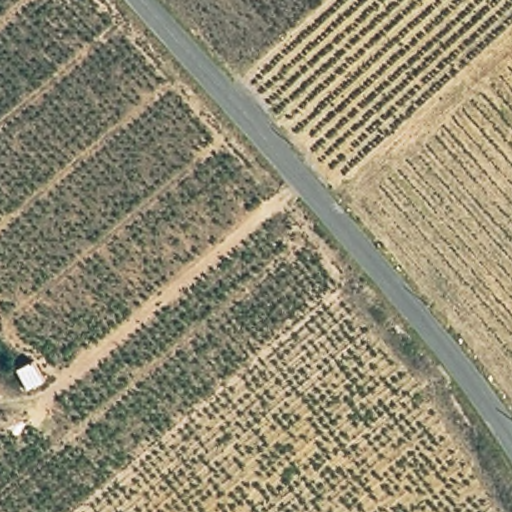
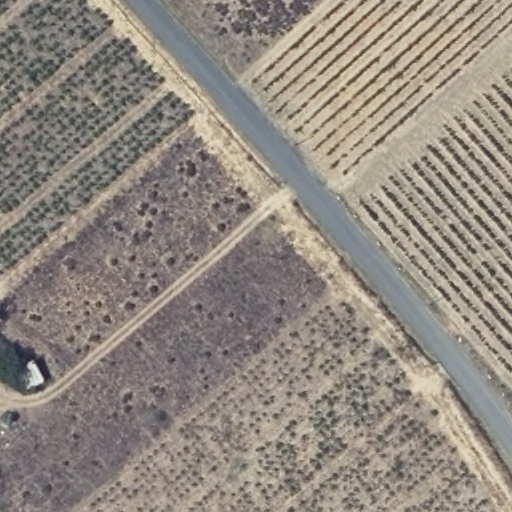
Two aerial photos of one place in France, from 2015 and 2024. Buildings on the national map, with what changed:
unchanged [(42,359),(55,370),(41,382),(32,371),(42,359)]

